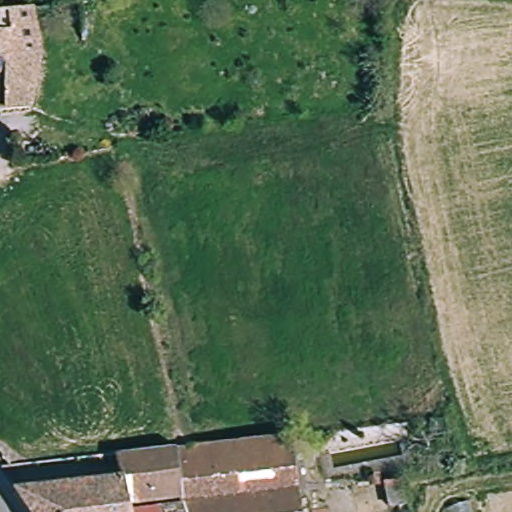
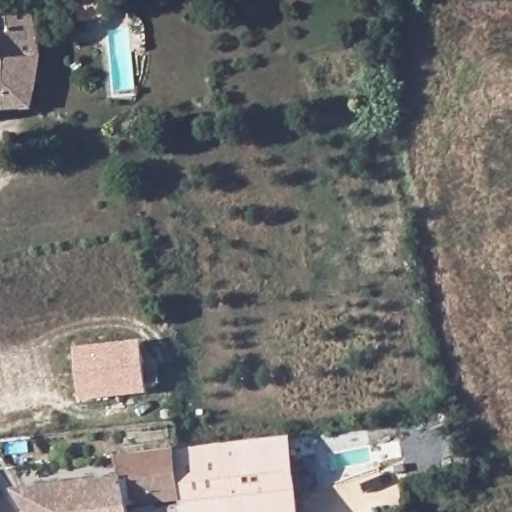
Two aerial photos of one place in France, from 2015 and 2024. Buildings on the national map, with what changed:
unchanged [(39,69),(31,108),(6,109),(3,77),(0,77),(0,12),(30,8),(39,69)]
new [(79,402),(74,349),(141,341),(147,394),(79,402)]
unchanged [(188,448),(288,438),(296,494),(228,503),(180,508),(179,502),(173,451),(188,448)]
unchanged [(15,494),(122,481),(116,456),(173,451),(179,502),(129,508),(129,512),(27,512),(15,494)]
unchanged [(228,503),(296,494),(298,512),(144,512),(163,510),(180,508),(228,503)]

